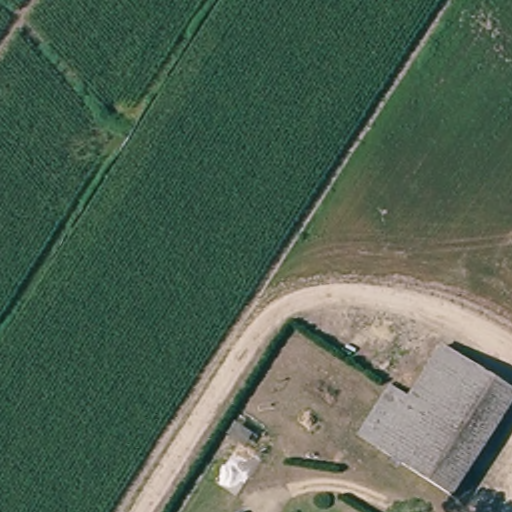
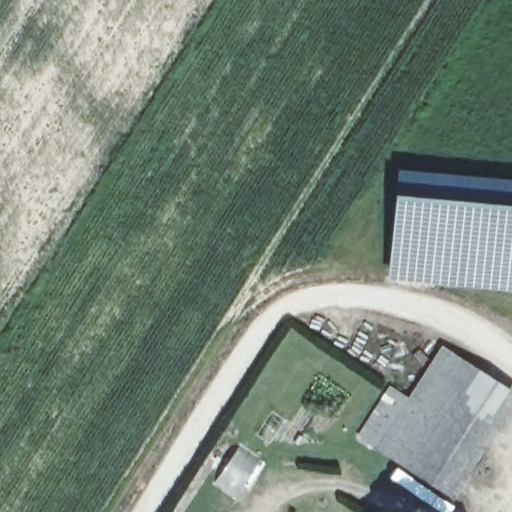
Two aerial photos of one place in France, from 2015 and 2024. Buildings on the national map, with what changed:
new [(396,192),(397,167),(512,178),(512,290),(388,279),(396,192)]
unchanged [(512,392),(512,407),(453,499),(376,448),(357,436),(390,384),(408,394),(442,344),(512,392)]

